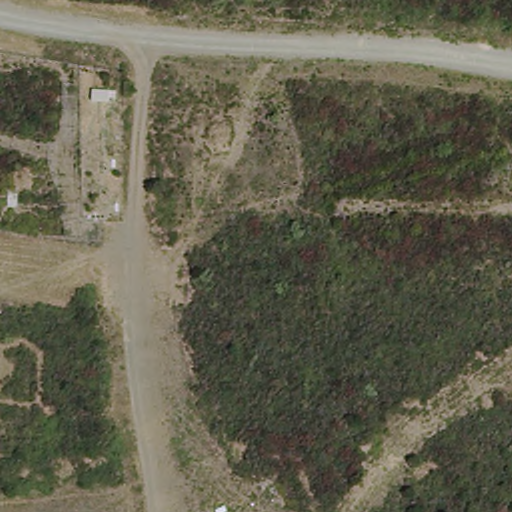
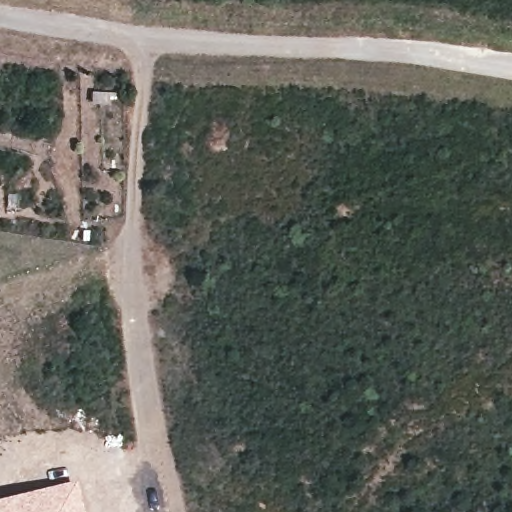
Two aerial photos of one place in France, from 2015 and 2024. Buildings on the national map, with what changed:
new [(82,512),(0,512),(0,496),(74,479),(82,512)]

